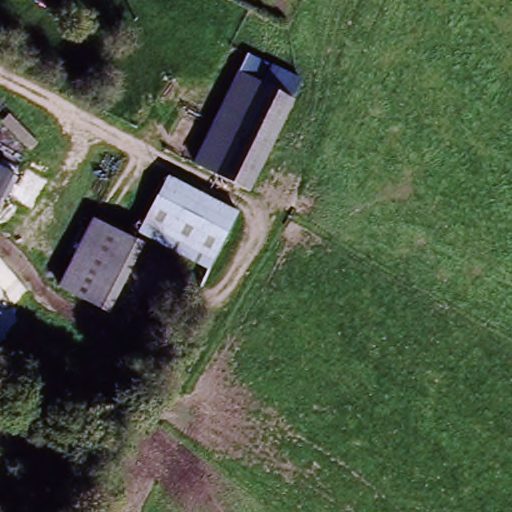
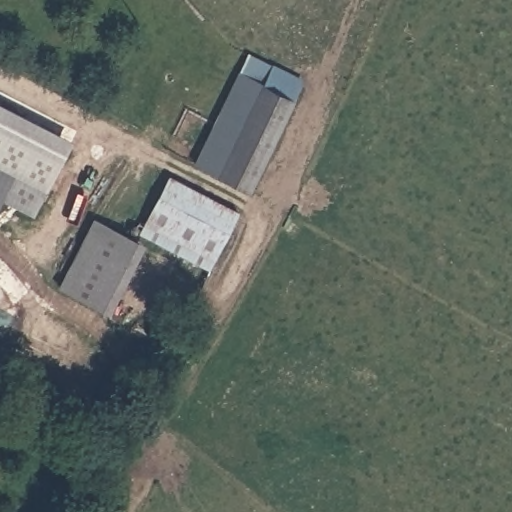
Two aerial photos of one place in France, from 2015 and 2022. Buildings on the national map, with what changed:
unchanged [(251,193),(200,163),(250,58),(306,83),(251,193)]
new [(72,140),(33,215),(2,200),(4,194),(15,173),(0,166),(0,102),(72,140)]
unchanged [(15,173),(0,203),(0,166),(15,173)]
unchanged [(173,174),(243,219),(215,272),(145,232),(173,174)]
unchanged [(90,214),(144,239),(107,312),(54,284),(90,214)]

